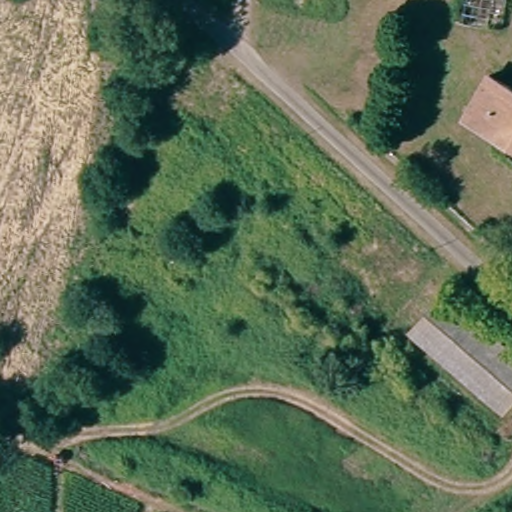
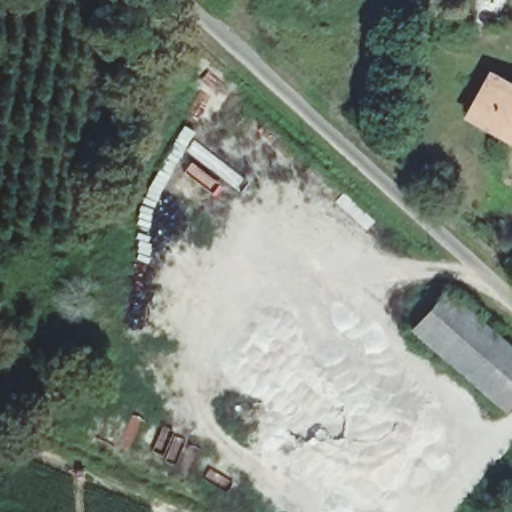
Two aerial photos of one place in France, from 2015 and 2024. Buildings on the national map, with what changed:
unchanged [(512,93),(512,136),(504,130),(498,139),(468,120),(494,82),(512,93)]
unchanged [(430,282),(512,354),(512,398),(502,409),(395,319),(430,282)]

